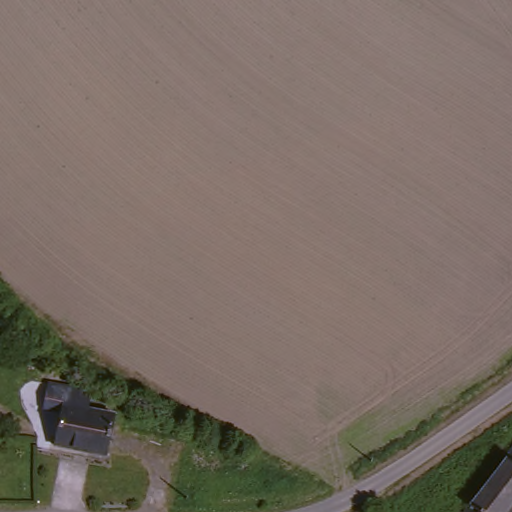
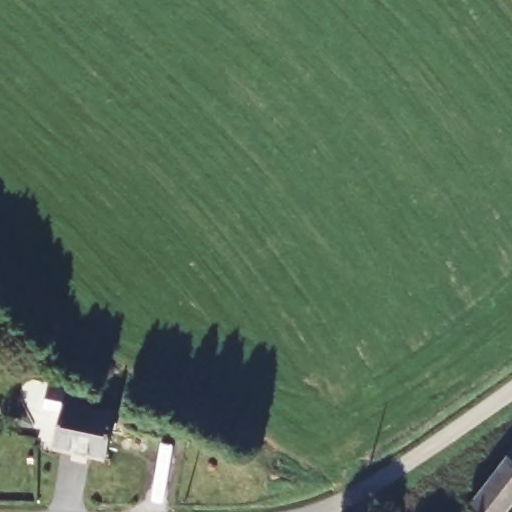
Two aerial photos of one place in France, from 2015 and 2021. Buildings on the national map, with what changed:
unchanged [(116,416),(118,416),(108,454),(106,454),(82,448),(81,453),(56,446),(69,405),(116,416)]
unchanged [(510,456),(512,453),(512,458),(510,456)]
unchanged [(467,512),(510,456),(512,458),(512,511),(511,512),(467,512)]

